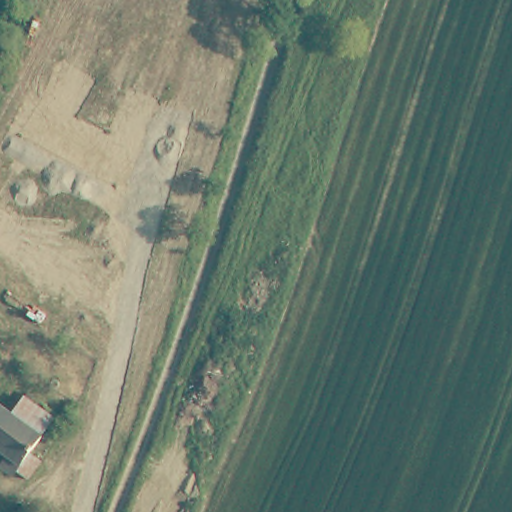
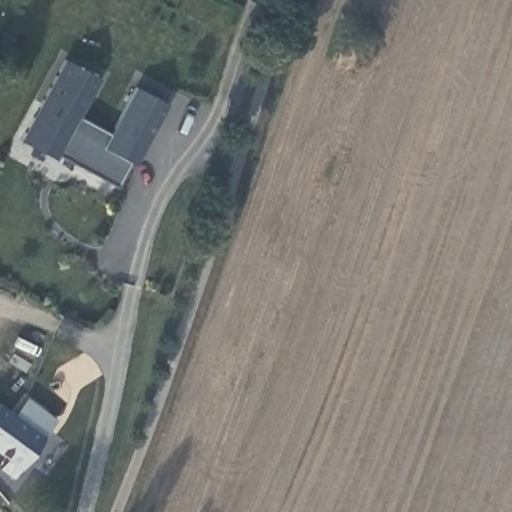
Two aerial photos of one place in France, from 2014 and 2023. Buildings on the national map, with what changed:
new [(58,155),(55,160),(20,141),(64,59),(100,79),(78,117),(110,134),(135,87),(167,105),(134,166),(131,164),(117,187),(58,155)]
unchanged [(27,396),(56,420),(14,475),(2,466),(10,456),(0,448),(0,403),(12,413),(27,396)]

